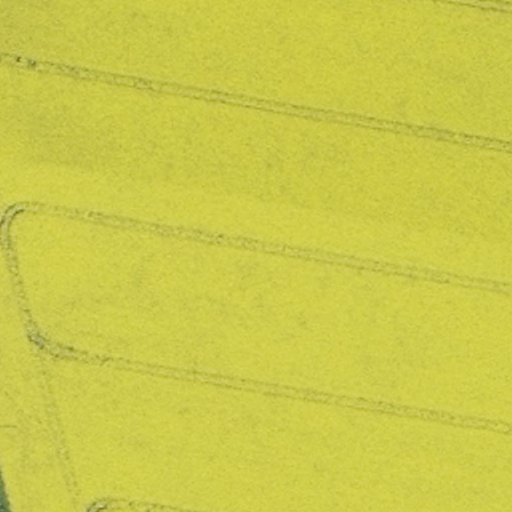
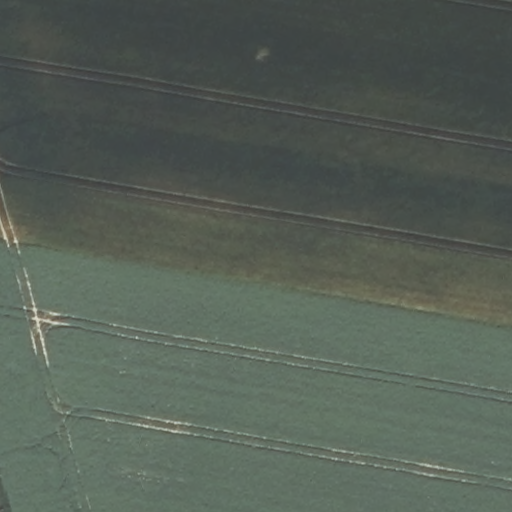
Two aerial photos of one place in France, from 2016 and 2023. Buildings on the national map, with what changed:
[]

